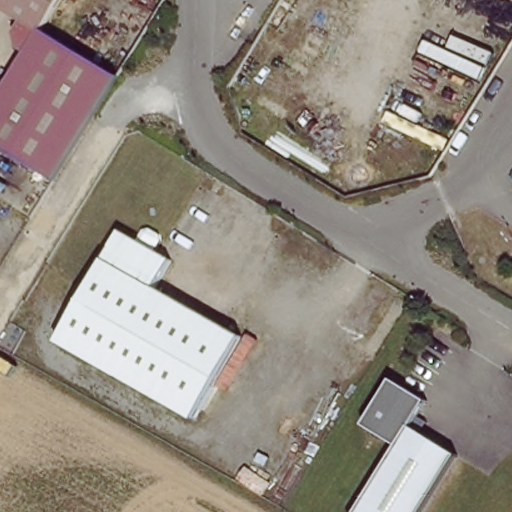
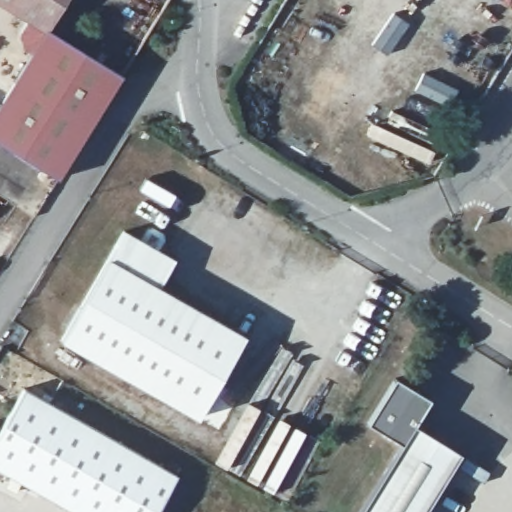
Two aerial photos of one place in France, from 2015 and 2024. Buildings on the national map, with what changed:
unchanged [(49,32),(29,23),(0,3),(0,0),(69,0),(49,32)]
unchanged [(32,55),(23,49),(20,36),(29,23),(49,32),(68,44),(52,70),(42,86),(4,150),(0,148),(0,105),(32,55)]
unchanged [(68,44),(121,80),(106,103),(52,70),(68,44)]
unchanged [(106,103),(99,115),(57,183),(4,150),(42,86),(52,70),(106,103)]
unchanged [(240,338),(193,419),(141,390),(58,342),(119,233),(169,261),(153,288),(189,309),(240,338)]
unchanged [(395,382),(429,404),(414,430),(460,458),(427,512),(362,512),(400,449),(367,429),(395,382)]
new [(155,512),(68,512),(0,473),(0,431),(23,391),(176,476),(155,512)]

